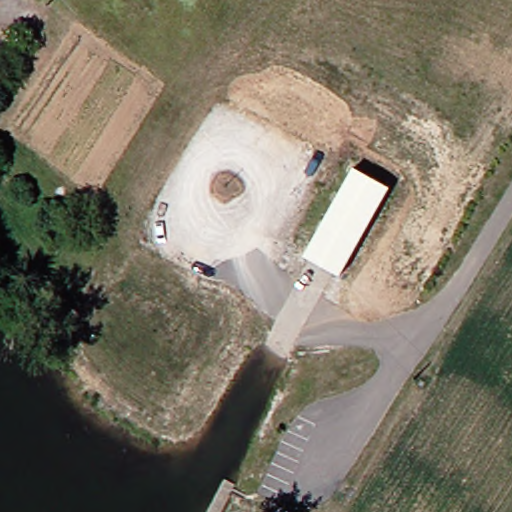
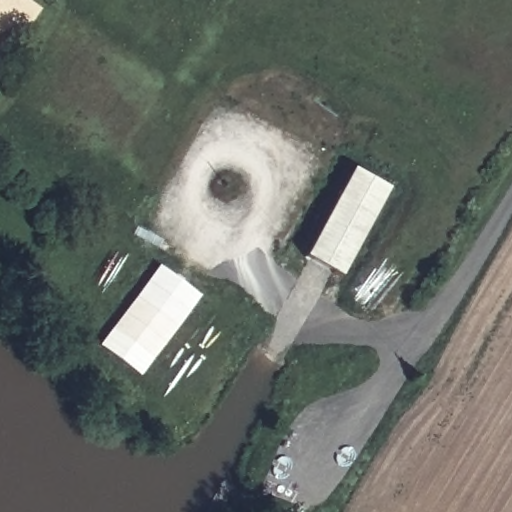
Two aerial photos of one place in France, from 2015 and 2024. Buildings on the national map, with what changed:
unchanged [(356,168),(390,189),(337,275),(302,254),(356,168)]
new [(97,346),(159,265),(199,297),(139,379),(97,346)]

